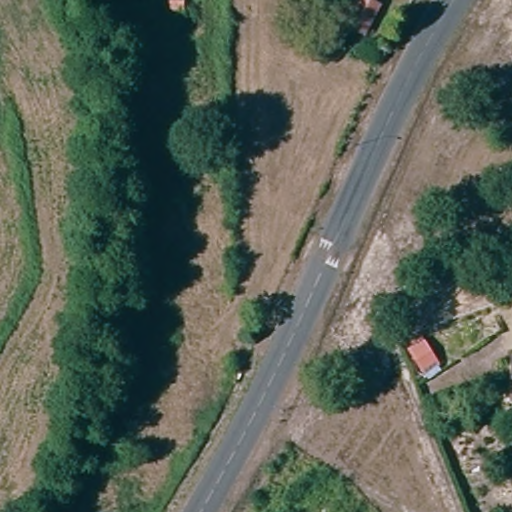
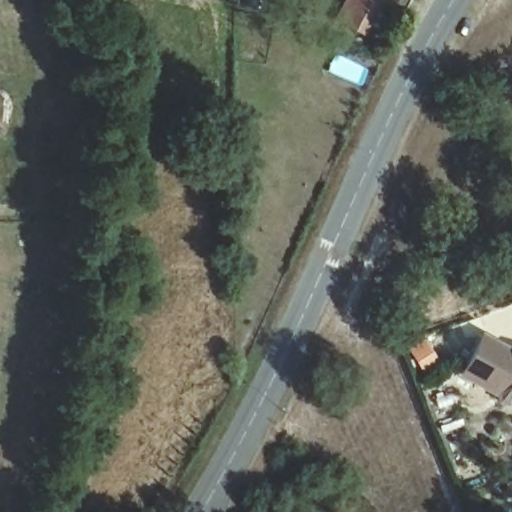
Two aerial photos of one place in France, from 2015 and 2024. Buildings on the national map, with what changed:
unchanged [(382,2),(366,37),(332,20),(341,0),(378,0),(382,2)]
demolished [(443,345),(430,352),(421,337),(435,329),(443,345)]
new [(512,396),(512,400),(511,400),(508,406),(494,403),(496,396),(456,373),(481,330),(508,346),(508,396),(512,396)]
unchanged [(432,360),(420,367),(411,352),(424,344),(432,360)]
unchanged [(508,351),(512,352),(512,396),(508,396),(508,351)]

